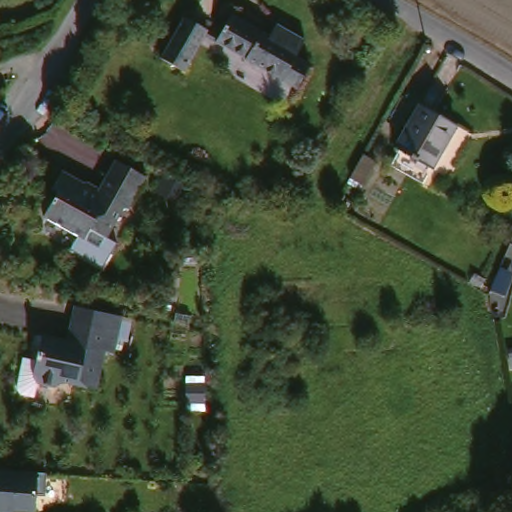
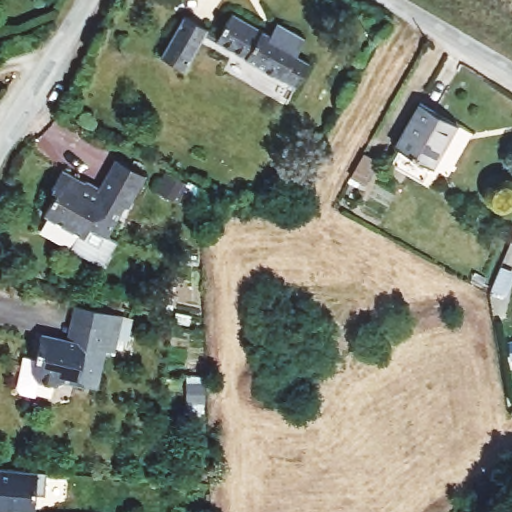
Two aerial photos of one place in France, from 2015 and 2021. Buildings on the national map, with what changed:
unchanged [(235,17),(273,38),(280,25),(308,41),(299,57),(313,66),(300,90),(219,45),(235,17)]
unchanged [(210,32),(207,38),(188,72),(164,59),(187,18),(210,32)]
unchanged [(393,156),(402,141),(398,138),(422,97),(457,118),(433,159),(424,174),(393,156)]
unchanged [(377,163),(364,186),(352,179),(364,157),(364,156),(377,163)]
unchanged [(127,206),(96,258),(92,258),(78,250),(77,248),(83,237),(46,215),(58,193),(54,190),(64,170),(88,182),(95,180),(104,185),(110,173),(118,160),(149,177),(146,182),(141,191),(131,208),(127,206)]
unchanged [(163,196),(158,193),(168,175),(173,178),(187,186),(177,203),(163,196)]
unchanged [(74,320),(77,305),(116,314),(113,328),(120,330),(115,352),(105,350),(97,388),(64,380),(56,385),(39,381),(34,373),(43,334),(69,340),(74,320)]
unchanged [(41,471),(39,489),(31,491),(29,508),(8,506),(8,510),(0,510),(0,467),(7,467),(41,471)]

